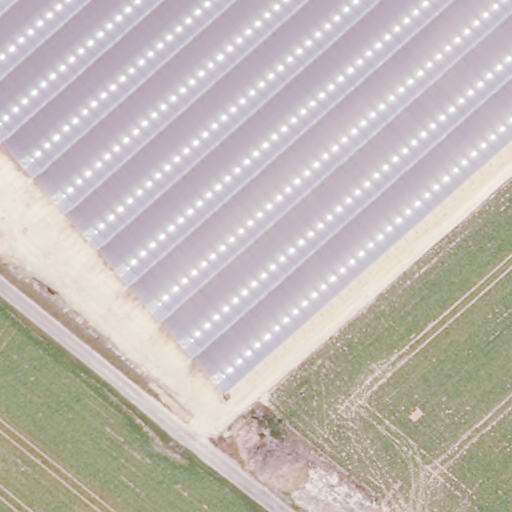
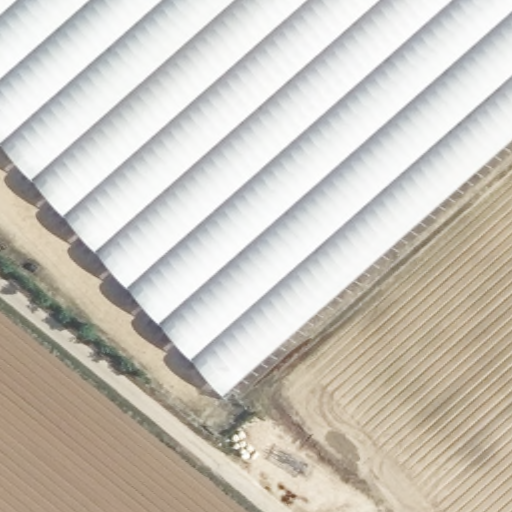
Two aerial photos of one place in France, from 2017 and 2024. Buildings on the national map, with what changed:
unchanged [(220,391),(0,142),(0,0),(512,0),(512,135),(220,391)]

